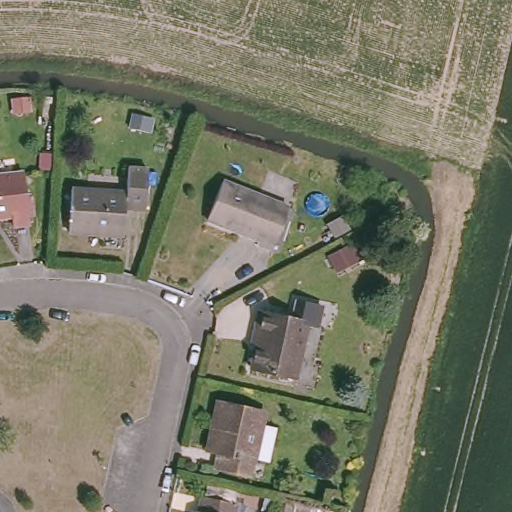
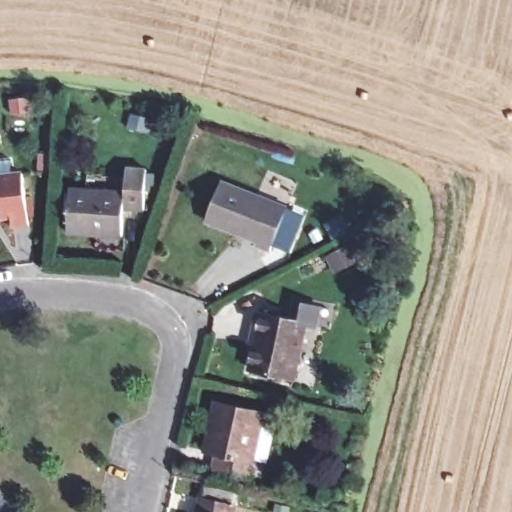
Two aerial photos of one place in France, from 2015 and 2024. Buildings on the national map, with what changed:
unchanged [(44,172),(44,155),(57,154),(57,171),(44,172)]
unchanged [(70,232),(72,188),(126,189),(127,168),(146,168),(146,204),(125,205),(125,233),(70,232)]
unchanged [(12,218),(12,215),(0,216),(0,173),(25,170),(30,215),(12,218)]
unchanged [(255,241),(257,234),(235,226),(235,229),(205,218),(219,182),(285,207),(270,247),(255,241)]
unchanged [(252,366),(261,329),(252,326),(257,306),(310,320),(296,376),(252,366)]
unchanged [(253,453),(250,467),(213,459),(217,444),(212,442),(219,414),(214,413),(219,396),(265,406),(262,418),(277,421),(267,456),(253,453)]
unchanged [(192,509),(197,510),(202,495),(204,496),(206,488),(232,494),(230,502),(234,503),(231,512),(192,512),(192,509)]

